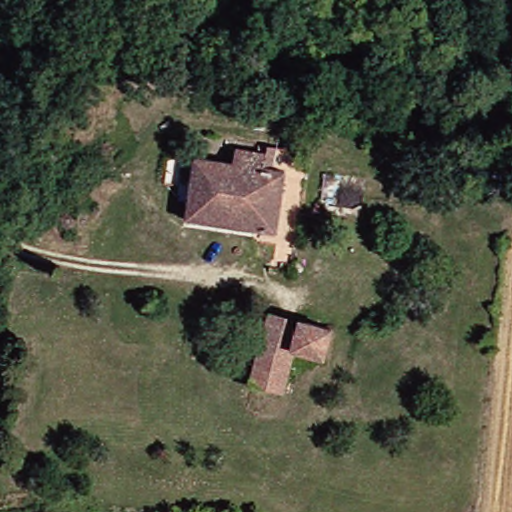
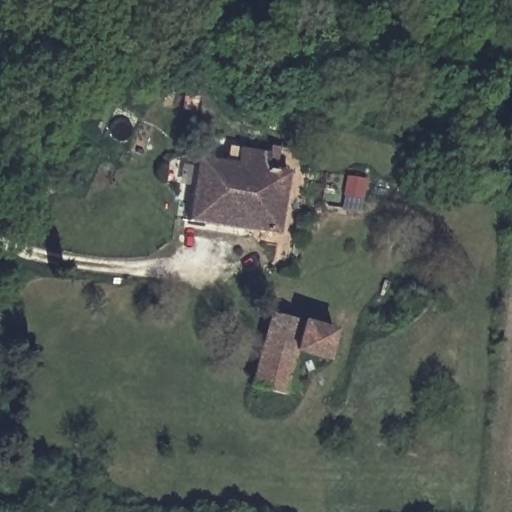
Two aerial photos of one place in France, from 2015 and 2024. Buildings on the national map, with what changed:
unchanged [(184,218),(193,155),(229,160),(231,143),(286,151),(274,231),(184,218)]
unchanged [(249,383),(268,310),(290,315),(282,348),(290,350),(280,392),(249,383)]
unchanged [(332,326),(325,360),(290,350),(298,317),(332,326)]

